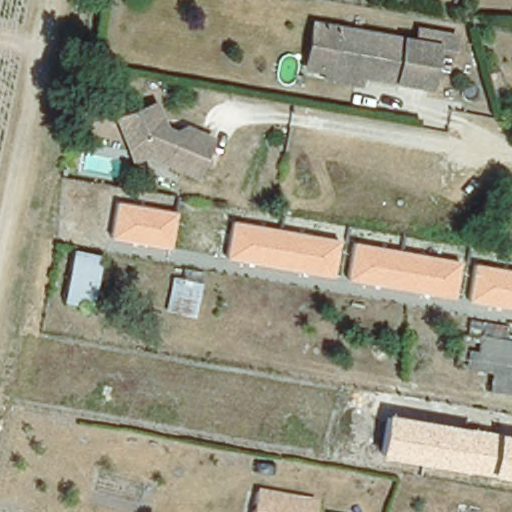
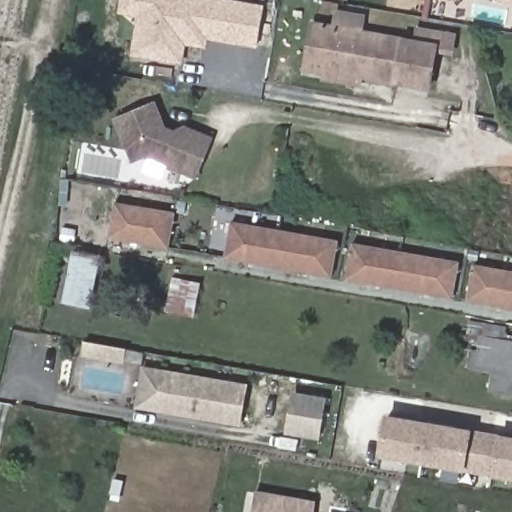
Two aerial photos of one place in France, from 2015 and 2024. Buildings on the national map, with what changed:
new [(186,45),(182,64),(131,55),(137,17),(118,13),(121,0),(233,0),(264,6),(258,47),(208,39),(206,48),(186,45)]
new [(501,0),(512,0),(512,2),(501,0)]
unchanged [(325,80),(326,72),(306,68),(313,24),(334,27),(405,40),(398,83),(364,77),(363,86),(325,80)]
unchanged [(423,42),(425,29),(455,34),(452,49),(437,46),(430,89),(398,83),(405,40),(423,42)]
unchanged [(154,110),(164,132),(172,136),(182,132),(209,143),(192,182),(147,162),(133,169),(115,126),(154,110)]
unchanged [(108,237),(115,202),(176,212),(169,247),(108,237)]
unchanged [(231,222),(339,240),(333,276),(225,257),(231,222)]
unchanged [(351,242),(460,261),(453,298),(344,279),(351,242)]
unchanged [(63,302),(74,250),(102,256),(91,308),(63,302)]
unchanged [(474,263),(512,270),(512,308),(467,301),(474,263)]
unchanged [(194,309),(167,303),(174,272),(201,278),(194,309)]
unchanged [(489,386),(491,368),(475,366),(480,331),(512,336),(512,389),(489,386)]
new [(83,340),(127,348),(124,362),(81,355),(83,340)]
new [(141,365),(246,384),(240,426),(133,407),(141,365)]
new [(327,397),(320,440),(284,433),(293,391),(327,397)]
unchanged [(377,457),(385,414),(512,436),(512,480),(377,457)]
unchanged [(315,506),(314,512),(252,512),(255,495),(315,506)]

